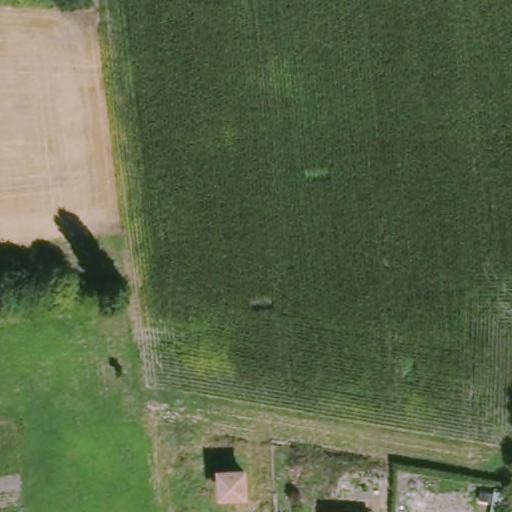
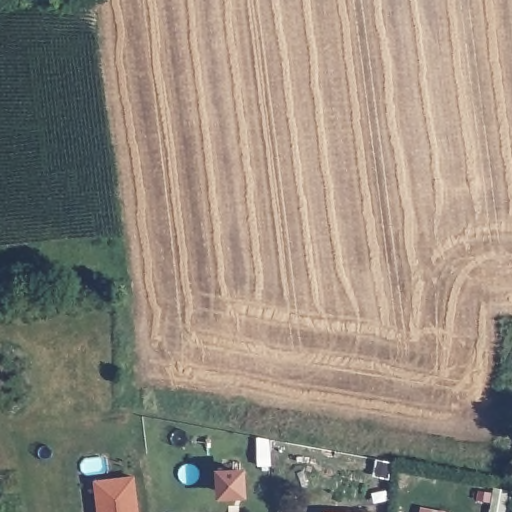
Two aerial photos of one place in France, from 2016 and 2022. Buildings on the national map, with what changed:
unchanged [(247,468),(252,500),(222,504),(218,472),(247,468)]
new [(135,475),(140,512),(100,512),(95,480),(135,475)]

